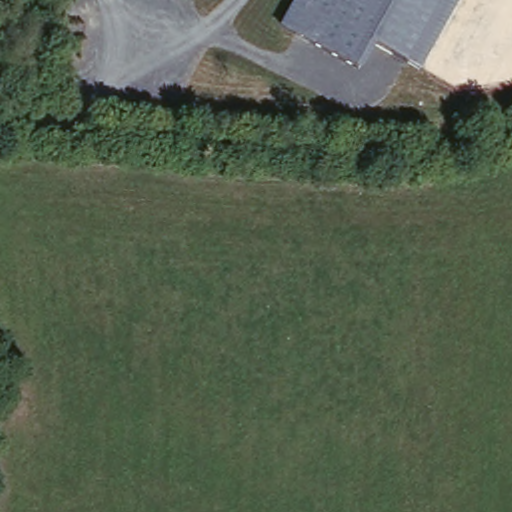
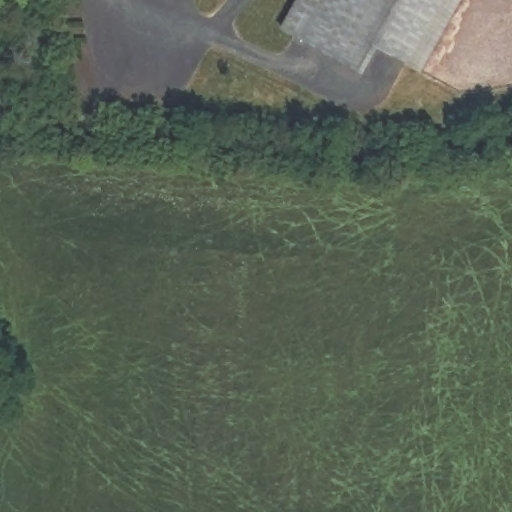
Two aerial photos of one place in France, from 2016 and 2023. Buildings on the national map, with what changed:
unchanged [(378,47),(370,62),(362,75),(279,30),(295,0),(461,0),(423,72),(378,47)]

